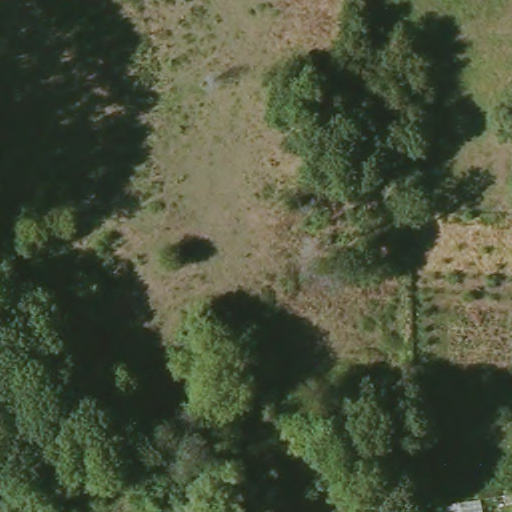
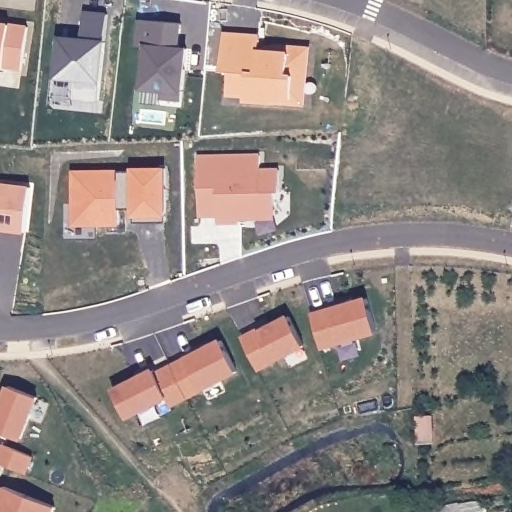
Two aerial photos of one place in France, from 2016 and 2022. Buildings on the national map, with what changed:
new [(75,82),(56,81),(59,38),(81,40),(85,13),(105,15),(104,41),(107,41),(105,84),(100,84),(98,103),(73,101),(75,82)]
new [(135,46),(137,20),(180,23),(178,48),(186,49),(182,100),(161,98),(162,91),(143,89),(146,47),(135,46)]
new [(22,69),(0,65),(0,23),(28,27),(22,69)]
new [(275,100),(245,98),(245,94),(225,93),(227,70),(220,69),(224,33),(259,35),(258,50),(275,51),(275,45),(300,47),(307,47),(305,76),(302,102),(275,100)]
new [(197,156),(259,155),(259,169),(278,169),(279,193),(275,193),(274,219),(239,220),(238,225),(217,224),(216,219),(198,219),(197,156)]
new [(130,172),(162,171),(163,223),(131,223),(130,208),(116,208),(116,227),(70,228),(70,193),(70,175),(86,174),(130,173),(130,172)]
new [(0,183),(30,187),(25,235),(0,232),(0,183)]
new [(385,338),(379,341),(376,335),(337,347),(336,343),(321,351),(310,315),(327,309),(371,295),(385,338)]
new [(304,349),(273,364),(258,372),(241,338),(256,330),(257,331),(288,316),(304,349)]
new [(238,374),(201,392),(170,408),(165,400),(126,419),(112,390),(152,370),(154,374),(185,357),(221,340),(238,374)]
demolished [(412,472),(411,380),(433,379),(433,472),(412,472)]
new [(21,441),(0,433),(0,403),(6,388),(37,398),(21,441)]
new [(55,512),(0,512),(0,494),(3,487),(56,509),(55,512)]
unchanged [(447,512),(435,512),(446,509),(447,512)]

